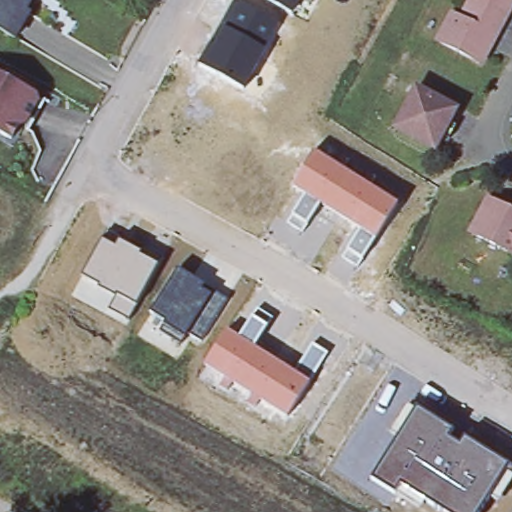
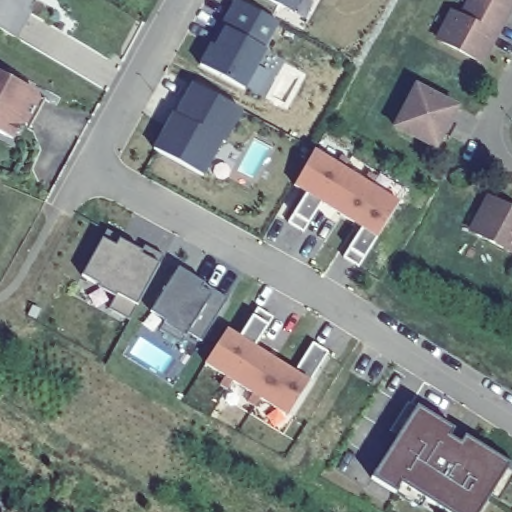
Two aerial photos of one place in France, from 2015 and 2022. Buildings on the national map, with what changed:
unchanged [(0,0),(27,0),(21,8),(27,12),(11,37),(0,30),(0,0)]
unchanged [(220,26),(235,0),(280,24),(267,48),(245,91),(198,66),(220,26)]
unchanged [(295,17),(265,0),(303,0),(295,17)]
unchanged [(458,15),(468,20),(475,7),(478,0),(512,0),(512,16),(507,25),(500,37),(486,64),(445,42),(458,15)]
unchanged [(19,125),(11,139),(0,133),(0,74),(3,76),(10,86),(17,84),(36,94),(38,101),(26,124),(19,125)]
unchanged [(457,106),(435,146),(396,124),(417,85),(457,106)]
new [(168,128),(170,129),(194,87),(243,114),(225,145),(243,155),(224,190),(155,152),(168,128)]
unchanged [(315,152),(398,204),(376,240),(363,260),(357,270),(340,260),(346,251),(360,229),(321,205),(309,225),(303,236),(286,225),(292,216),(305,196),(293,188),(315,152)]
unchanged [(473,234),(491,201),(512,212),(512,255),(473,234)]
unchanged [(116,295),(84,276),(103,240),(115,249),(120,241),(139,253),(137,256),(158,267),(136,304),(128,320),(108,310),(116,295)]
unchanged [(165,323),(150,313),(178,270),(213,292),(226,300),(201,342),(189,334),(181,345),(160,331),(165,323)]
unchanged [(226,333),(239,340),(251,318),(257,309),(272,319),(267,327),(254,347),(292,371),(311,344),(327,355),(310,381),(287,418),(205,368),(226,333)]
unchanged [(390,433),(407,404),(416,409),(453,430),(448,438),(461,445),(466,437),(512,465),(512,480),(500,500),(490,495),(480,512),(446,512),(426,499),(419,509),(396,493),(372,478),(399,436),(390,433)]

